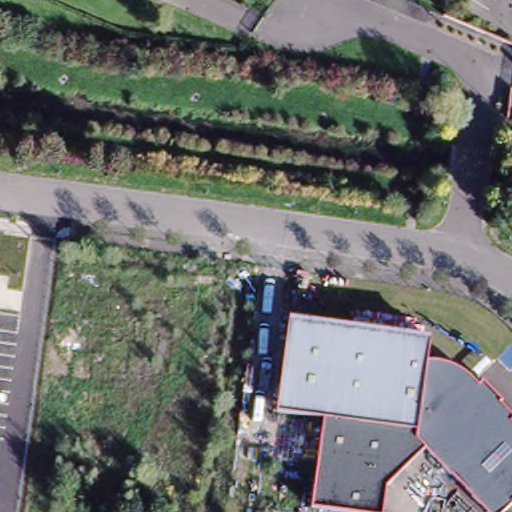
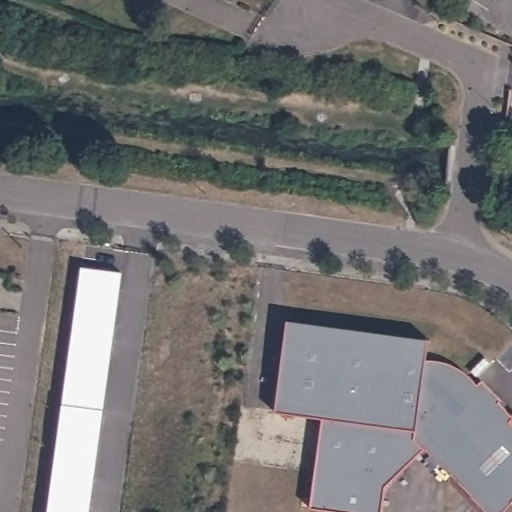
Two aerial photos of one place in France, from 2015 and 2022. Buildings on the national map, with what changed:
new [(124,272),(91,512),(48,512),(81,269),(124,272)]
unchanged [(428,354),(429,354),(430,354),(431,354),(432,354),(433,354),(434,354),(435,354),(436,354),(437,354),(438,354),(439,354),(440,354),(441,354),(442,354),(443,354),(443,355),(444,355),(445,355),(446,356),(447,356),(448,356),(449,357),(450,357),(451,357),(452,357),(452,358),(453,358),(454,358),(455,359),(456,359),(457,359),(458,360),(459,361),(460,361),(461,362),(462,362),(462,363),(463,363),(464,364),(465,364),(466,364),(466,365),(467,366),(468,366),(468,367),(469,367),(469,368),(470,368),(471,369),(472,369),(472,370),(473,371),(474,372),(475,373),(476,374),(477,375),(477,376),(478,376),(478,377),(479,377),(479,378),(484,373),(503,393),(501,395),(512,406),(512,498),(497,512),(495,512),(472,489),(473,488),(452,467),(451,467),(427,442),(389,481),(385,512),(381,512),(327,506),(313,504),(324,414),(277,409),(288,316),(357,324),(430,333),(427,354),(428,354)]

